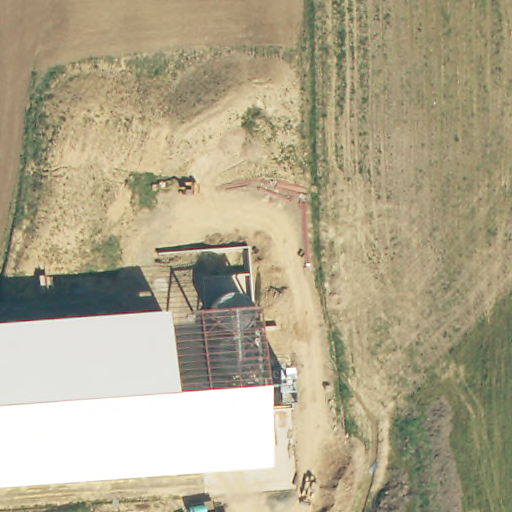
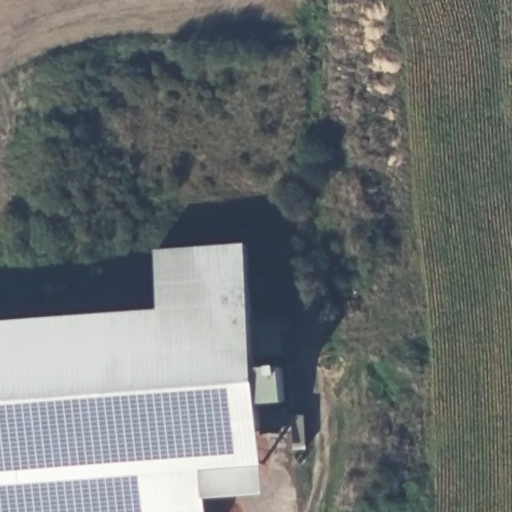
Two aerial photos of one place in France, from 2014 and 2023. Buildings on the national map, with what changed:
new [(287,403),(272,404),(260,406),(258,385),(169,392),(161,312),(156,251),(246,245),(257,372),(269,370),(284,369),(287,403)]
unchanged [(0,484),(0,324),(161,312),(169,392),(258,385),(266,462),(0,484)]
new [(205,501),(206,512),(0,512),(0,484),(266,462),(267,496),(205,501)]

